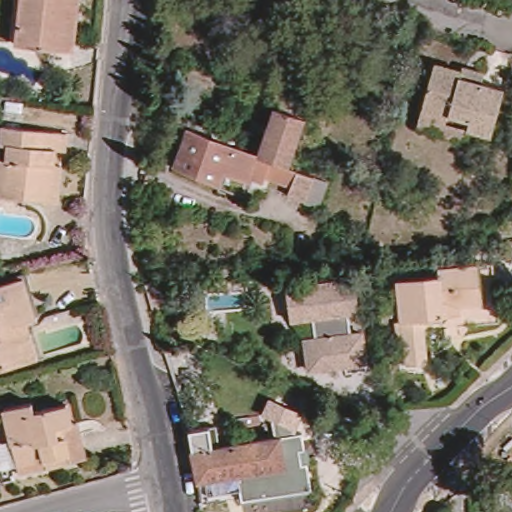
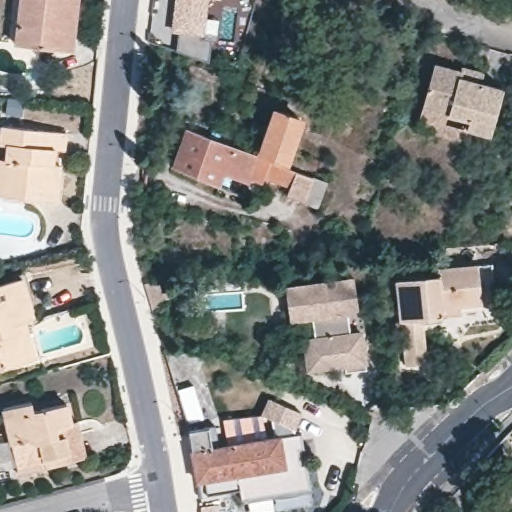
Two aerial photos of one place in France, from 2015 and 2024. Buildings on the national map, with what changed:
unchanged [(17,45),(21,0),(78,0),(77,6),(72,50),(62,49),(17,45)]
new [(178,58),(180,34),(172,33),(176,0),(209,0),(207,18),(215,20),(210,59),(178,58)]
unchanged [(462,73),(462,69),(484,75),(482,85),(503,91),(493,128),(423,110),(435,66),(462,73)]
unchanged [(217,183),(173,166),(188,127),(247,150),(250,139),(262,144),(278,102),(303,112),(287,156),(276,152),(272,161),(325,181),(316,202),(287,191),(290,181),(265,171),(263,174),(248,168),(245,178),(241,177),(236,190),(217,183)]
unchanged [(491,137),(467,132),(465,143),(418,130),(423,110),(493,128),(491,137)]
unchanged [(49,201),(5,197),(0,197),(0,160),(7,161),(10,146),(2,146),(3,126),(67,132),(65,151),(55,150),(53,165),(62,167),(58,202),(49,201)]
unchanged [(383,282),(422,278),(422,271),(465,267),(478,265),(483,323),(430,329),(430,317),(387,321),(383,282)]
unchanged [(0,283),(30,274),(39,313),(32,315),(40,354),(30,357),(0,365),(0,283)]
unchanged [(304,371),(300,341),(311,340),(308,318),(286,321),(282,289),(350,280),(354,311),(343,313),(346,335),(357,333),(362,370),(341,373),(340,366),(332,367),(304,371)]
unchanged [(400,368),(393,320),(423,318),(427,363),(400,368)]
unchanged [(12,403),(38,398),(40,408),(72,401),(75,418),(82,417),(89,454),(75,457),(50,463),(24,469),(22,461),(12,403)]
unchanged [(286,435),(290,464),(215,477),(217,492),(197,497),(195,479),(192,459),(187,430),(217,424),(218,445),(286,435)]
unchanged [(512,477),(512,512),(498,512),(493,481),(512,477)]

